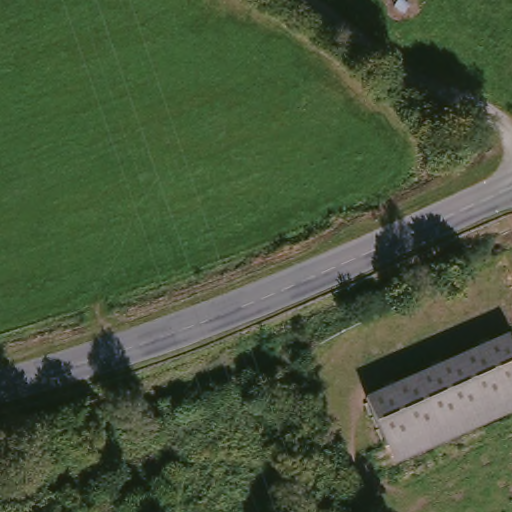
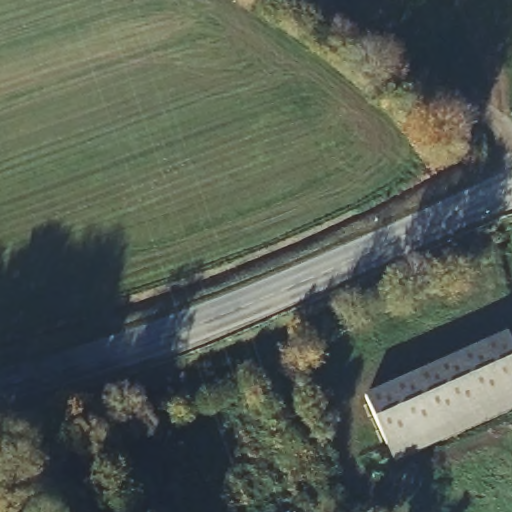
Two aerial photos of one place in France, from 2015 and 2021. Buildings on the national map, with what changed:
unchanged [(512,345),(512,406),(391,461),(361,395),(504,328),(512,345)]

